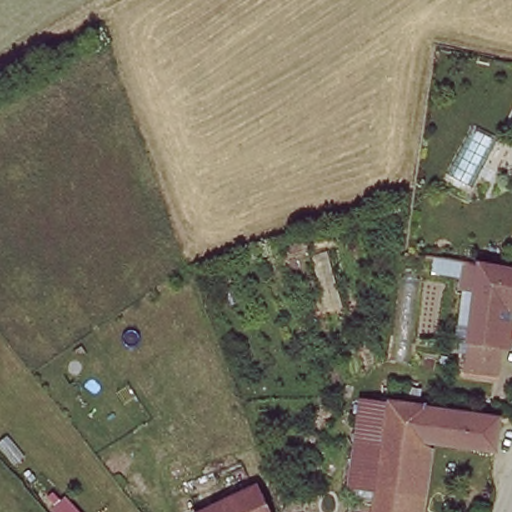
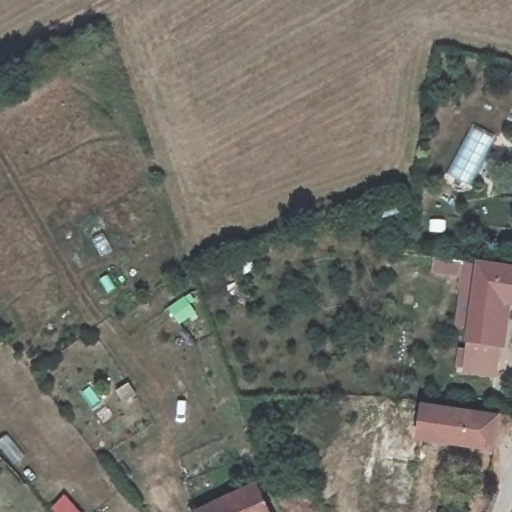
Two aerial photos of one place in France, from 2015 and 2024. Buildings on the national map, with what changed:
unchanged [(505,306),(497,375),(464,371),(474,265),(512,269),(512,307),(505,306)]
demolished [(347,477),(360,395),(494,416),(492,450),(434,444),(422,512),(369,512),(373,485),(347,477)]
new [(420,401),(502,413),(495,452),(413,440),(420,401)]
unchanged [(252,483),(265,512),(195,512),(195,511),(252,483)]

